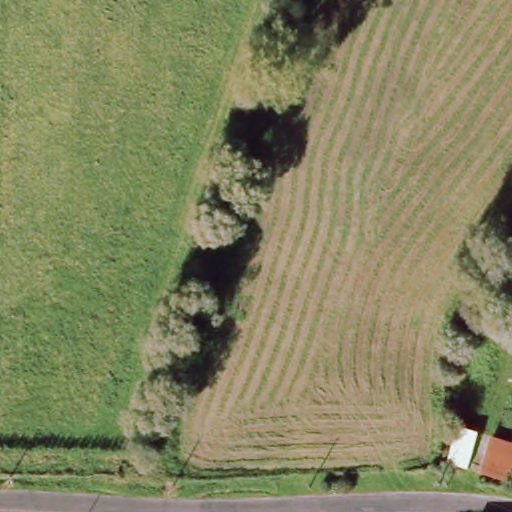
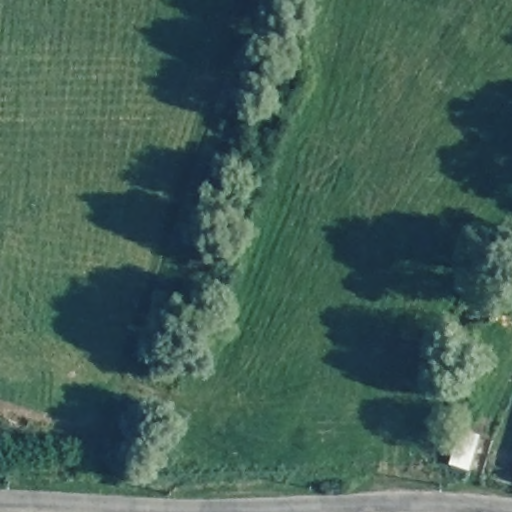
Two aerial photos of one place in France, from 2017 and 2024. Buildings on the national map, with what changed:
unchanged [(469,466),(474,454),(467,449),(474,433),(484,434),(512,443),(512,480),(510,479),(469,466)]

